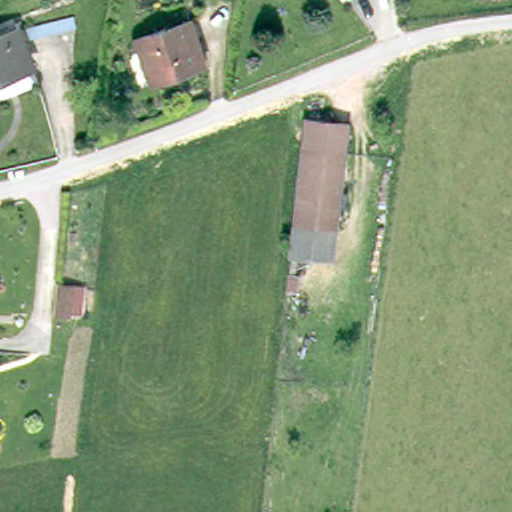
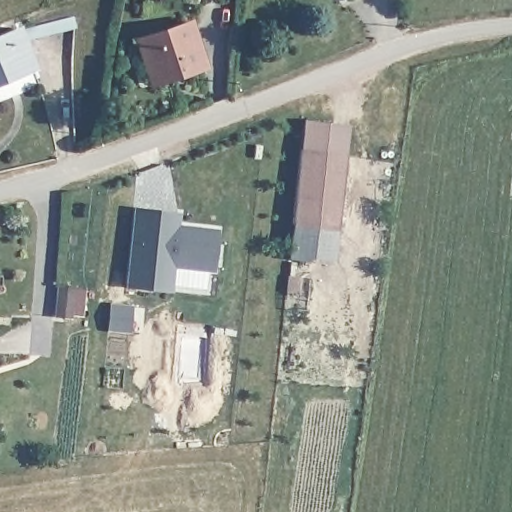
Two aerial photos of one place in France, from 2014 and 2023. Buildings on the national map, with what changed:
unchanged [(72,30),(27,45),(24,34),(69,19),(72,30)]
unchanged [(156,76),(144,42),(195,24),(211,65),(188,73),(158,83),(156,76)]
unchanged [(15,37),(25,66),(0,75),(0,42),(15,37)]
unchanged [(337,263),(295,263),(308,130),(355,134),(337,263)]
new [(172,290),(126,287),(134,207),(181,212),(179,225),(218,228),(214,272),(174,267),(172,290)]
unchanged [(59,286),(74,287),(71,317),(56,316),(59,286)]

